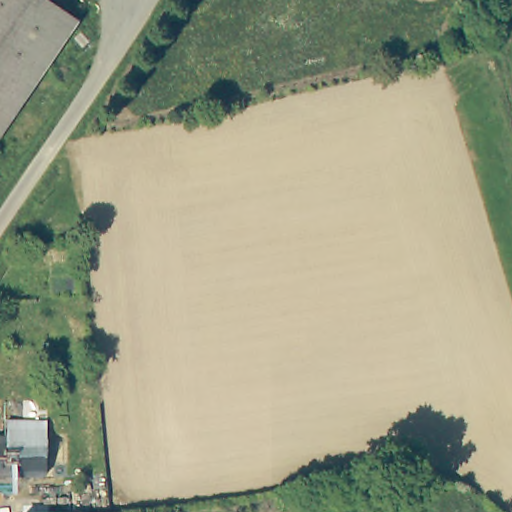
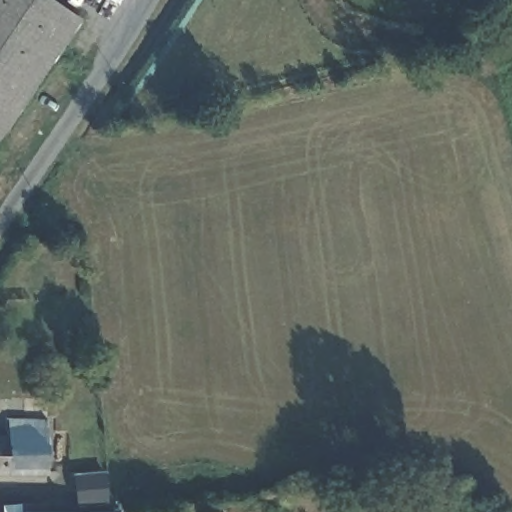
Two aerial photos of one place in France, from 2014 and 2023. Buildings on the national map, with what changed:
unchanged [(49,0),(75,17),(0,123),(0,0),(49,0)]
unchanged [(47,456),(47,472),(36,472),(0,471),(0,432),(12,432),(11,418),(46,417),(47,456)]
new [(74,474),(107,471),(110,505),(77,507),(74,474)]
unchanged [(119,512),(19,512),(20,510),(80,511),(119,510),(119,512)]

